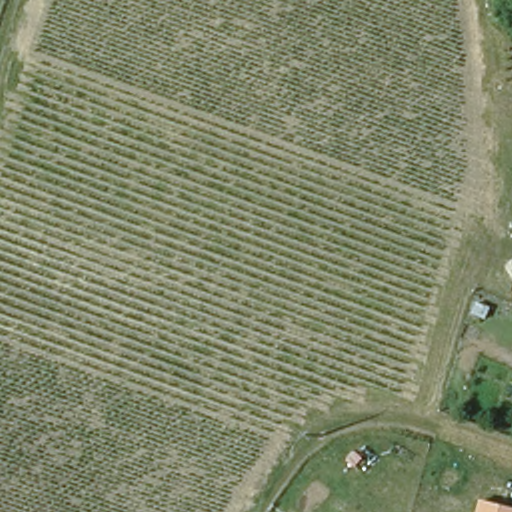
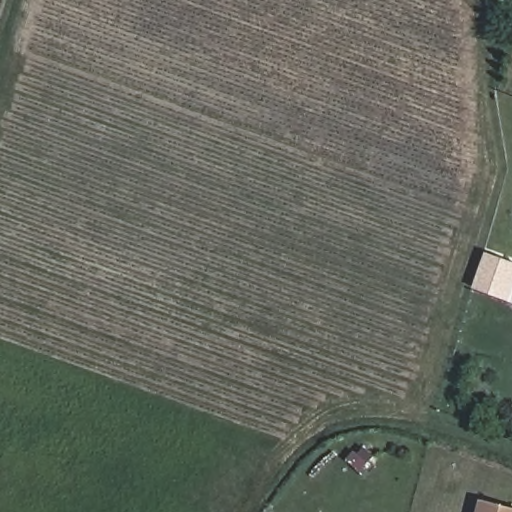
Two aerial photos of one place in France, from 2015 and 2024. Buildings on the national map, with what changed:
new [(483,252),(512,262),(512,298),(511,301),(472,288),(483,252)]
unchanged [(512,508),(512,512),(478,512),(482,500),(512,508)]

